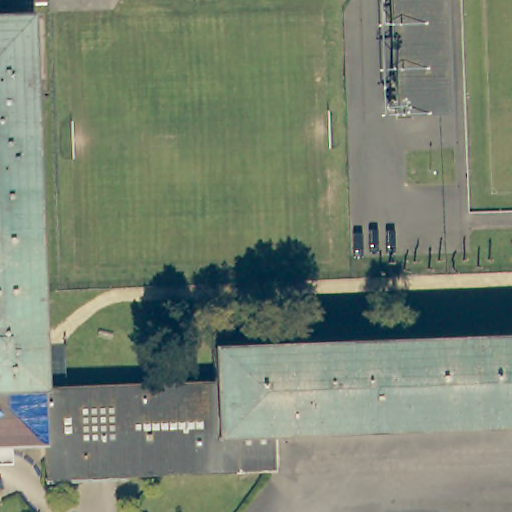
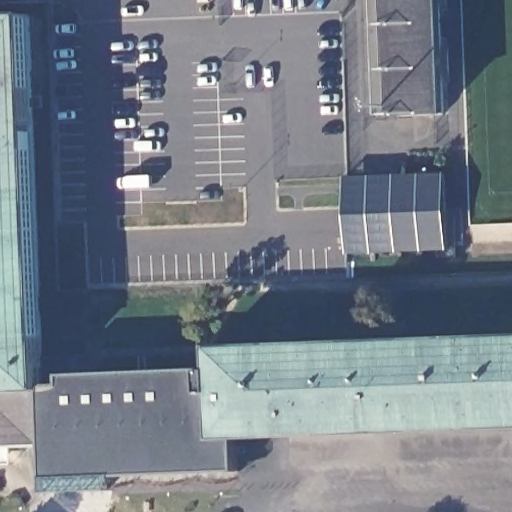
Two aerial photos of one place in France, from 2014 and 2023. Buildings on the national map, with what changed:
unchanged [(389,116),(386,0),(431,0),(435,116),(389,116)]
unchanged [(242,474),(49,481),(47,448),(0,450),(0,22),(31,21),(46,392),(217,387),(215,350),(512,338),(512,429),(240,440),(242,474)]
new [(448,251),(349,254),(346,177),(446,173),(448,251)]

